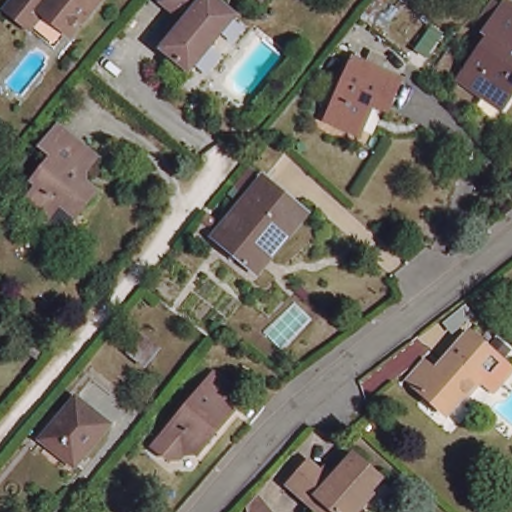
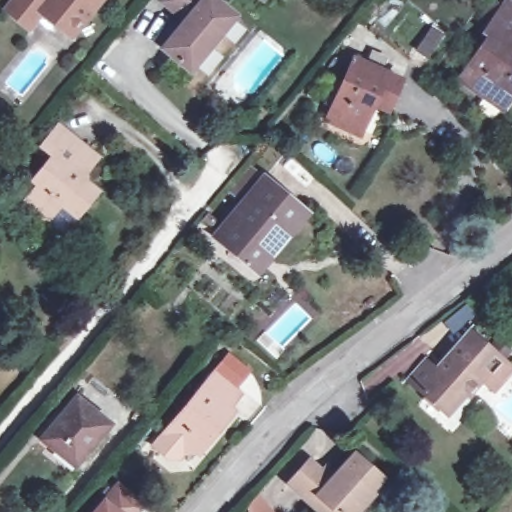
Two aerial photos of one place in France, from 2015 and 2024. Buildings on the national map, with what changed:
unchanged [(9,0),(95,0),(77,21),(73,17),(57,36),(31,16),(18,32),(0,17),(0,11),(9,0)]
unchanged [(161,49),(183,21),(161,2),(163,0),(216,0),(236,16),(190,72),(161,49)]
unchanged [(512,89),(498,110),(456,82),(485,37),(480,33),(482,30),(472,23),(487,0),(490,0),(498,6),(500,3),(512,10),(512,89)]
unchanged [(400,76),(387,106),(373,99),(360,129),(326,114),(331,102),(324,99),(335,75),(342,79),(352,55),(400,76)]
unchanged [(46,142),(62,121),(100,152),(90,166),(90,177),(100,186),(67,227),(30,197),(43,179),(38,175),(56,151),(46,142)]
unchanged [(260,273),(254,268),(215,237),(262,179),(305,213),(290,231),(292,233),(260,273)]
unchanged [(483,386),(475,379),(467,372),(437,408),(400,375),(416,356),(425,365),(458,327),(494,357),(501,364),(483,386)]
unchanged [(128,353),(142,335),(160,349),(145,367),(128,353)]
unchanged [(239,391),(229,404),(233,408),(198,451),(189,444),(179,456),(170,457),(153,444),(213,370),(239,391)]
unchanged [(36,438),(70,397),(105,425),(70,466),(36,438)]
unchanged [(310,492),(290,473),(308,452),(321,464),(326,457),(335,465),(354,444),(380,467),(343,509),(339,506),(334,512),(333,512),(310,492)]
new [(117,481),(147,507),(143,512),(91,512),(103,496),(117,481)]

